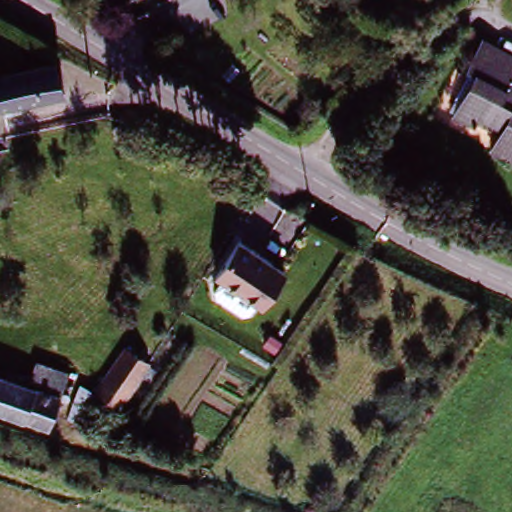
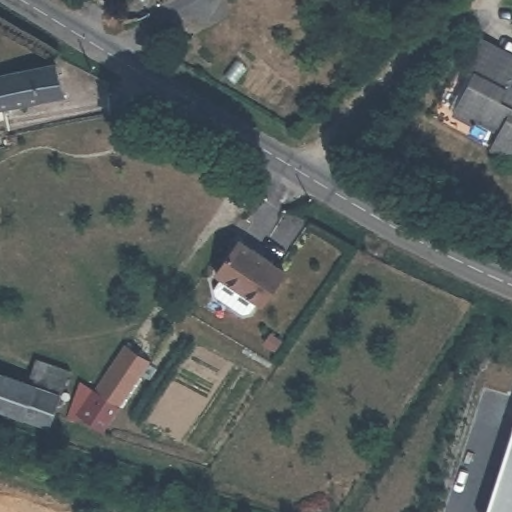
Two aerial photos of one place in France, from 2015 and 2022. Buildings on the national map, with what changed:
unchanged [(167,0),(168,0),(167,1),(167,0)]
unchanged [(511,161),(491,151),(501,131),(492,126),(489,131),(475,124),(471,125),(470,126),(452,118),(473,76),(465,73),(480,43),(481,41),(512,57),(512,78),(508,86),(512,88),(512,161),(511,161)]
unchanged [(2,106),(0,107),(0,75),(55,64),(61,94),(19,103),(20,108),(3,111),(2,106)]
unchanged [(248,310),(226,295),(221,292),(219,285),(226,275),(222,272),(244,238),(256,246),(290,269),(268,303),(262,299),(255,309),(248,310)]
unchanged [(125,346),(152,363),(161,369),(154,380),(145,374),(125,405),(98,389),(125,346)]
unchanged [(37,360),(69,372),(61,396),(50,428),(0,410),(0,373),(28,384),(37,360)]
unchanged [(105,435),(102,439),(95,434),(64,413),(78,377),(98,389),(125,405),(105,435)]
new [(512,435),(512,512),(488,512),(512,435)]

